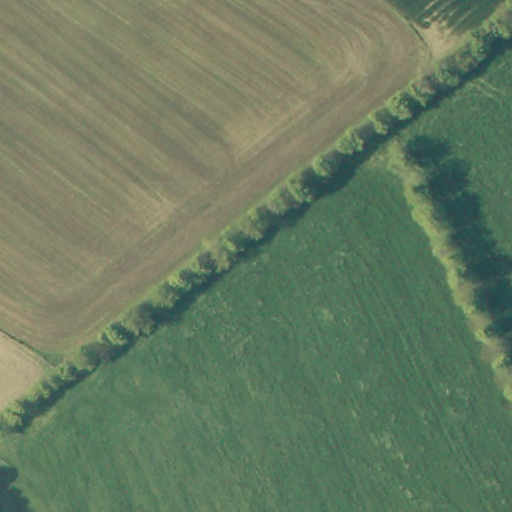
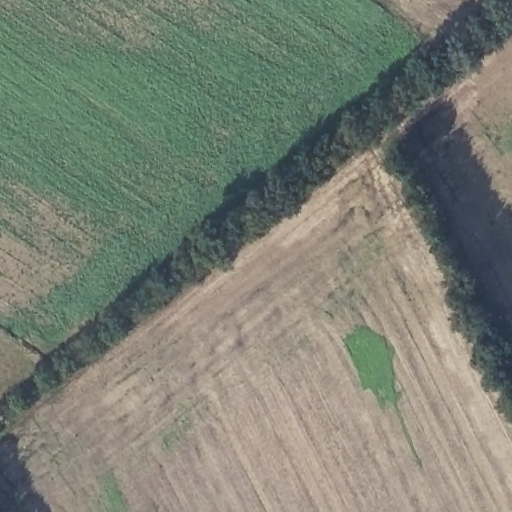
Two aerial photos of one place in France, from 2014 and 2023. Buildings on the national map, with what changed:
[]

